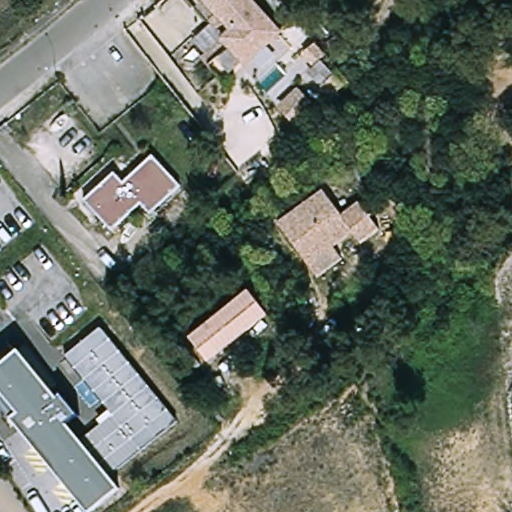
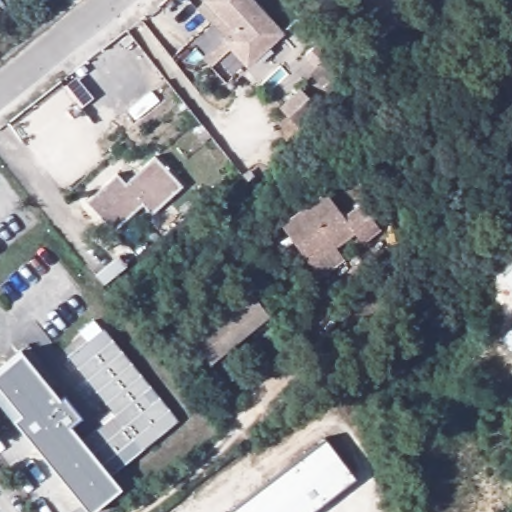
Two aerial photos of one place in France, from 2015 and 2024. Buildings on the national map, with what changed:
unchanged [(285,31),(231,81),(215,63),(236,44),(230,38),(239,29),(213,0),(257,0),(285,31)]
unchanged [(118,173),(127,182),(156,156),(184,186),(154,214),(144,204),(115,231),(88,201),(118,173)]
unchanged [(323,274),(313,261),(283,221),(329,187),(347,212),(364,199),(383,225),(365,239),(357,228),(337,243),(346,256),(323,274)]
new [(512,263),(512,286),(500,275),(512,263)]
unchanged [(253,293),(272,316),(214,363),(195,340),(253,293)]
unchanged [(103,324),(180,416),(112,472),(83,437),(115,411),(68,353),(103,324)]
unchanged [(112,472),(123,485),(92,511),(14,417),(21,411),(0,386),(0,366),(22,348),(60,395),(65,391),(82,413),(71,422),(83,437),(112,472)]
new [(356,480),(314,512),(230,512),(325,440),(356,480)]

